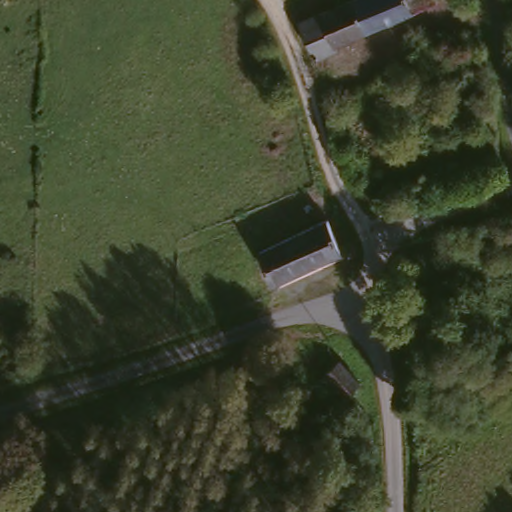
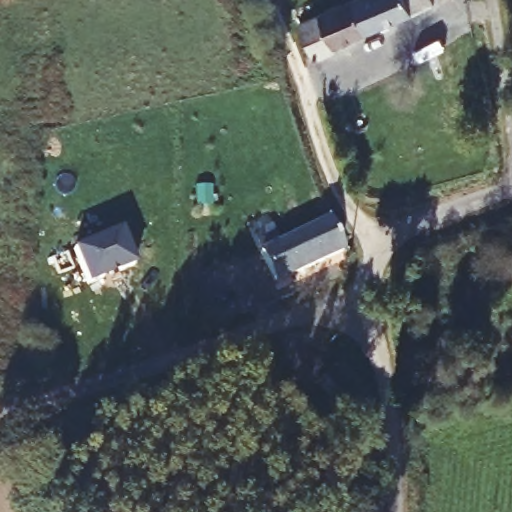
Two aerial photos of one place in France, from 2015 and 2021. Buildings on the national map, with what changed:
unchanged [(337,50),(316,57),(301,22),(353,0),(432,0),(335,44),(337,50)]
unchanged [(264,251),(286,241),(332,220),(346,250),(300,270),(277,281),(264,251)]
new [(137,265),(86,286),(72,248),(121,228),(137,265)]
unchanged [(423,268),(412,270),(410,257),(422,252),(423,268)]
unchanged [(349,396),(328,375),(342,358),(364,382),(349,396)]

